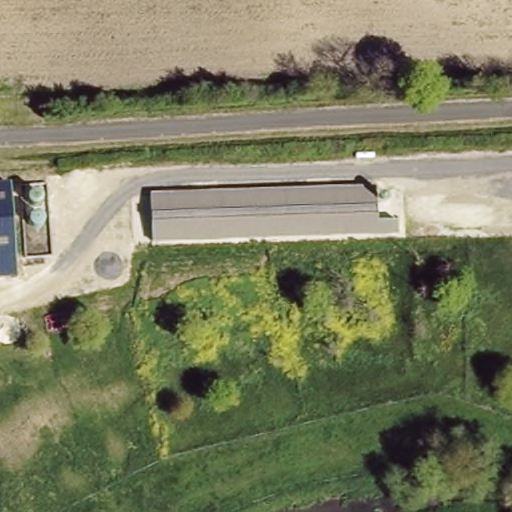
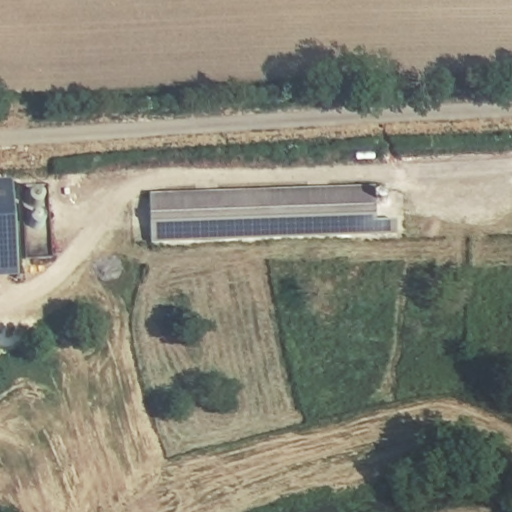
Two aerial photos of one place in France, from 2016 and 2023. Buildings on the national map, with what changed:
unchanged [(374,183),(376,220),(397,220),(398,238),(152,244),(152,192),(374,183)]
unchanged [(11,184),(15,277),(0,278),(0,185),(11,184)]

